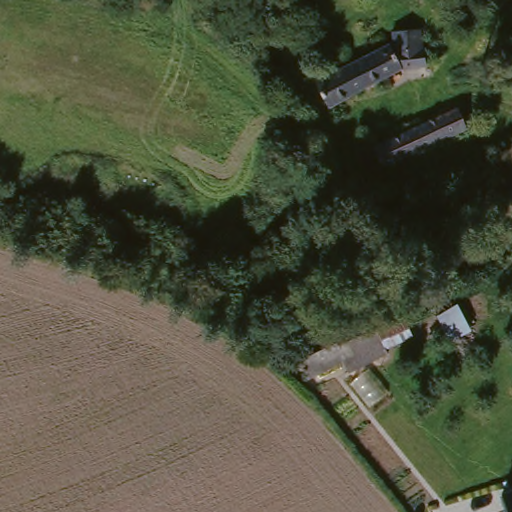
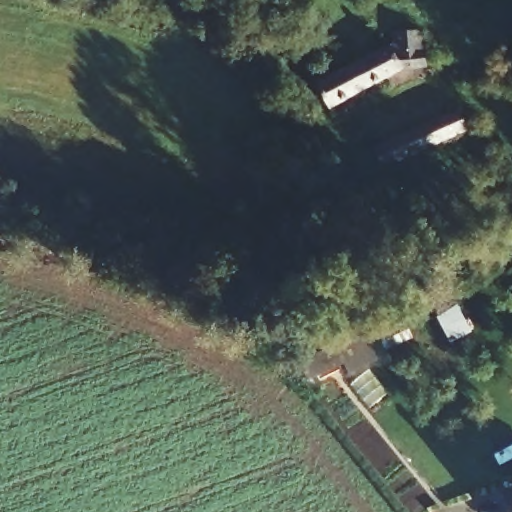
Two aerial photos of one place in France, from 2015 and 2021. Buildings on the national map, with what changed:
unchanged [(311,83),(385,47),(384,32),(417,28),(417,66),(322,110),(311,83)]
unchanged [(453,109),(455,114),(458,122),(462,131),(421,149),(409,126),(453,109)]
unchanged [(385,165),(374,140),(409,126),(421,149),(385,165)]
unchanged [(378,349),(382,364),(304,388),(294,358),(401,321),(407,335),(378,349)]
unchanged [(512,512),(506,512),(500,491),(512,488),(512,512)]

